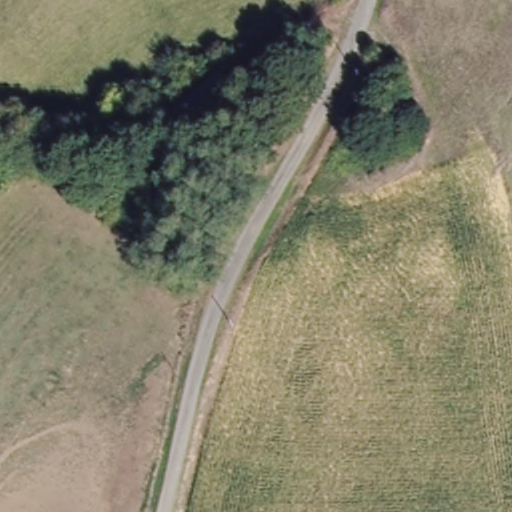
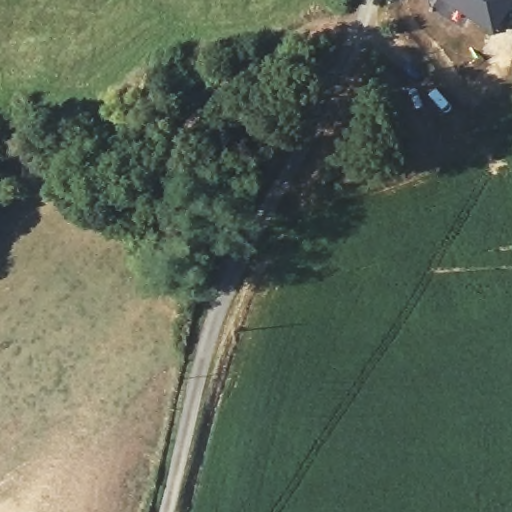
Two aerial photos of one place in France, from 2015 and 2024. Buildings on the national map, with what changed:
new [(455,10),(450,19),(431,8),(435,0),(512,0),(512,5),(493,34),(455,10)]

